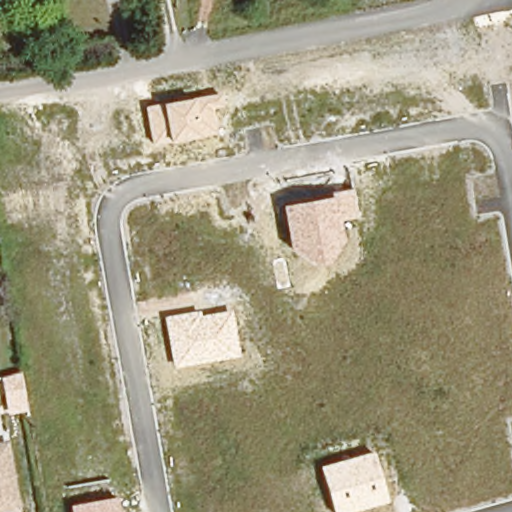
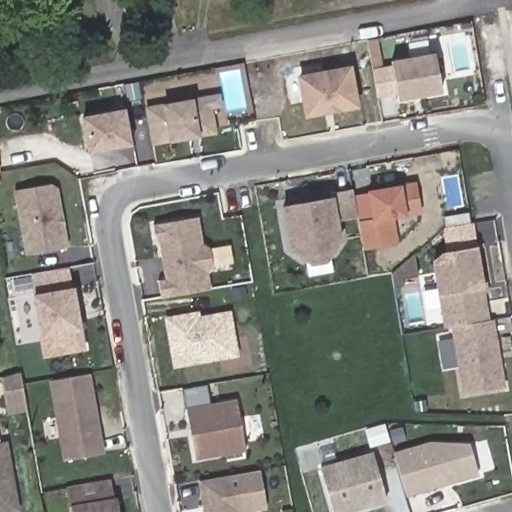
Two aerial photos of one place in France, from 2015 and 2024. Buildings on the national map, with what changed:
new [(398,98),(390,62),(435,54),(442,90),(398,98)]
new [(358,106),(306,115),(299,77),(350,69),(358,106)]
unchanged [(223,107),(210,110),(215,134),(155,147),(145,106),(218,90),(223,107)]
new [(88,152),(81,117),(125,107),(132,145),(88,152)]
demolished [(69,214),(10,225),(3,183),(67,173),(74,213),(69,214)]
new [(25,253),(13,191),(50,182),(57,188),(68,246),(25,253)]
new [(371,219),(367,190),(402,184),(416,182),(421,213),(405,217),(396,218),(398,242),(363,249),(359,219),(371,219)]
unchanged [(359,219),(339,224),(343,242),(327,263),(314,266),(290,248),(282,206),(353,190),(359,219)]
new [(165,278),(159,241),(155,241),(152,224),(198,216),(202,244),(210,247),(213,267),(208,272),(211,288),(160,297),(157,280),(165,278)]
new [(443,253),(478,247),(483,276),(487,275),(490,292),(486,292),(490,319),(495,318),(506,386),(463,393),(451,327),(444,328),(433,263),(443,253)]
new [(40,337),(32,295),(73,287),(81,330),(40,337)]
unchanged [(238,356),(171,368),(163,317),(200,309),(202,316),(233,310),(238,356)]
new [(64,460),(48,381),(91,373),(104,453),(64,460)]
new [(11,412),(9,404),(6,381),(21,377),(26,401),(27,409),(11,412)]
new [(237,398),(246,451),(195,460),(186,408),(182,390),(207,385),(210,403),(237,398)]
new [(478,475),(406,495),(392,451),(428,441),(469,442),(478,475)]
unchanged [(1,447),(14,512),(0,512),(0,448),(1,447)]
unchanged [(387,501),(347,512),(333,512),(320,467),(373,452),(387,501)]
new [(267,507),(267,509),(251,512),(203,512),(197,480),(260,470),(267,507)]
new [(115,498),(118,512),(70,512),(69,506),(65,486),(109,478),(115,498)]

